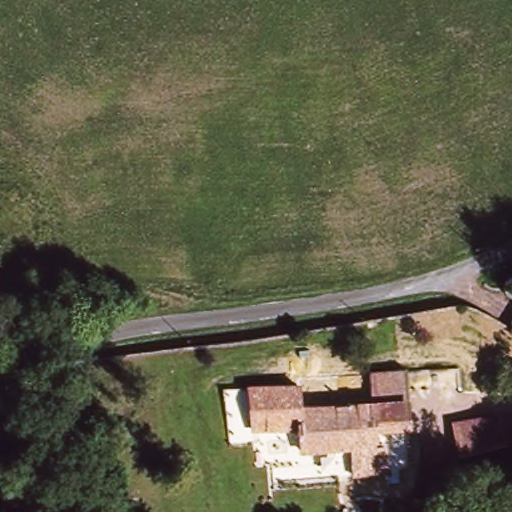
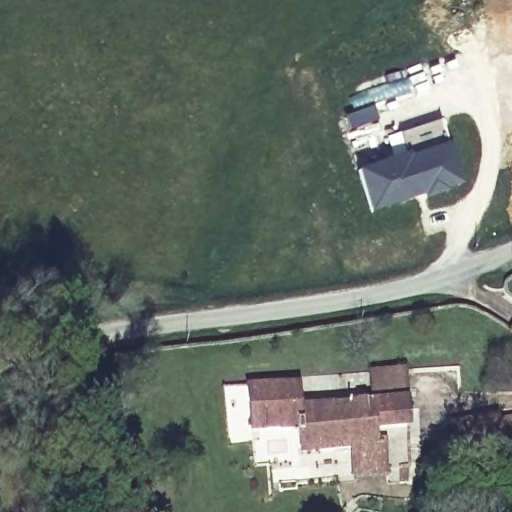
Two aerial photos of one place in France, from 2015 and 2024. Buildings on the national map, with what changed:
new [(407,155),(408,158),(447,145),(459,184),(446,188),(447,190),(425,197),(424,194),(373,210),(360,170),(407,155)]
unchanged [(351,448),(315,452),(313,431),(308,430),(307,420),(262,422),(262,409),(307,407),(340,405),(357,405),(379,404),(378,373),(408,371),(411,402),(414,402),(418,450),(419,464),(379,472),(357,477),(354,465),(351,448)]
unchanged [(262,409),(262,383),(305,381),(307,407),(262,409)]
unchanged [(459,426),(499,421),(512,420),(512,445),(504,446),(462,456),(460,439),(459,426)]

